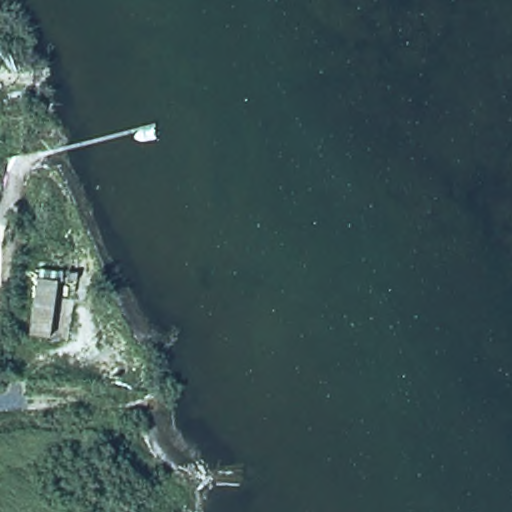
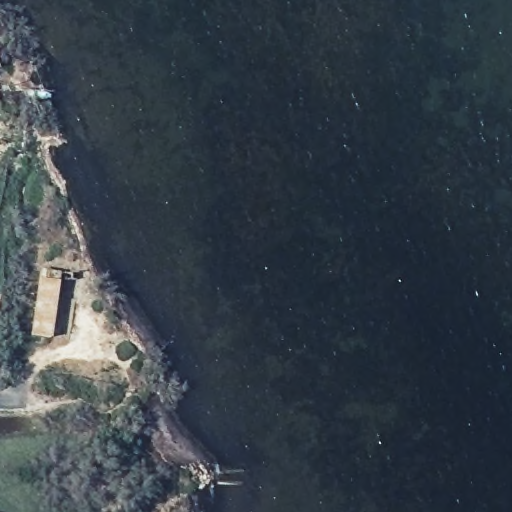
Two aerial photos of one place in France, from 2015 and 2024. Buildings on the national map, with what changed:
unchanged [(65,279),(59,338),(29,337),(36,272),(65,279)]

